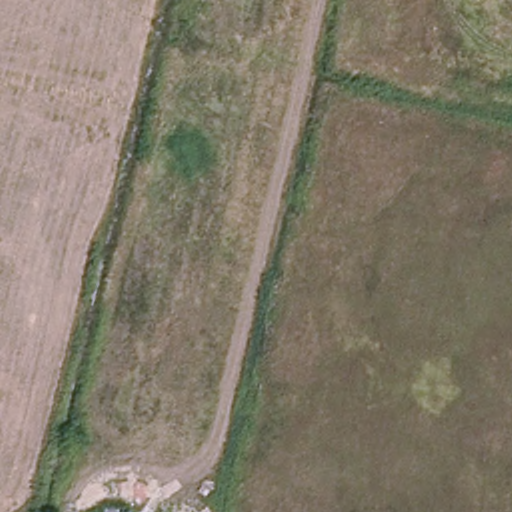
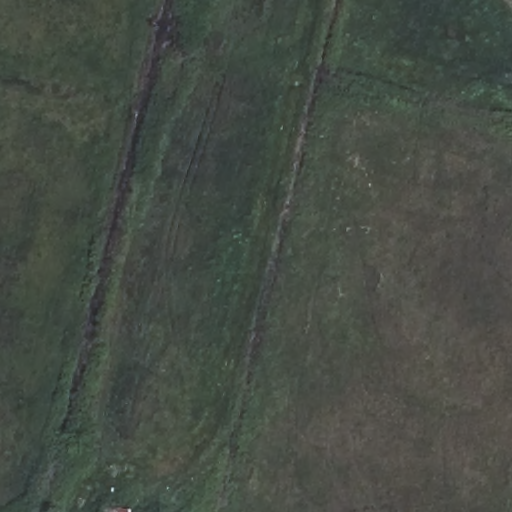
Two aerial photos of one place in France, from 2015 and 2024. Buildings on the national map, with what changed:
[]

